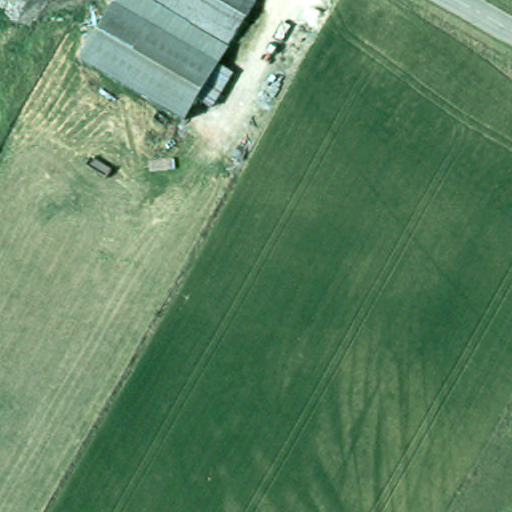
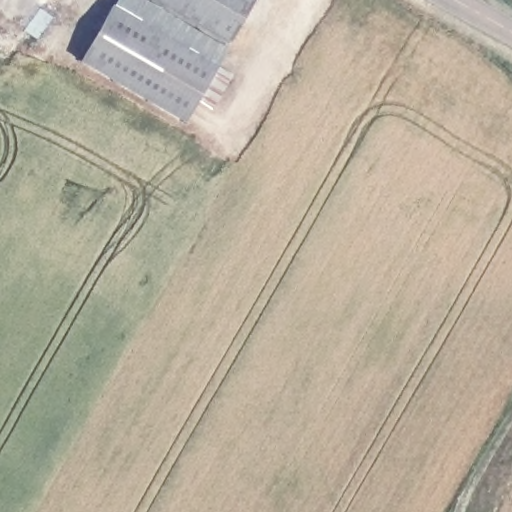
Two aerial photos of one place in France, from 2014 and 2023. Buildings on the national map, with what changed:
unchanged [(118,0),(148,0),(228,44),(190,120),(88,61),(118,0)]
unchanged [(251,0),(228,44),(148,0),(251,0)]

